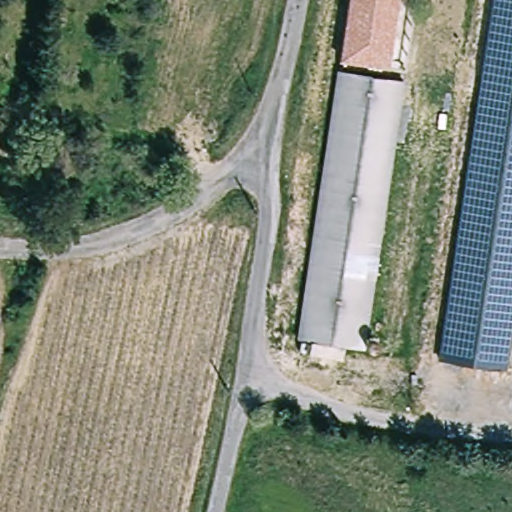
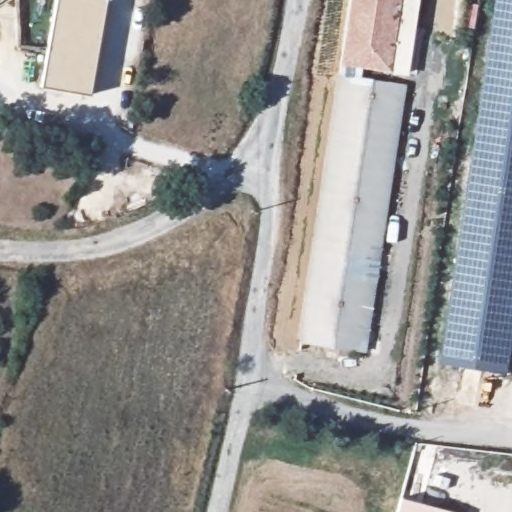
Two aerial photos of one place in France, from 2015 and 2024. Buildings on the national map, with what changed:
new [(56,0),(107,0),(90,95),(41,87),(56,0)]
unchanged [(366,351),(301,342),(344,0),(411,0),(366,351)]
unchanged [(512,362),(506,361),(503,376),(433,363),(489,0),(512,0),(512,362)]
new [(396,512),(400,497),(453,512),(396,512)]

